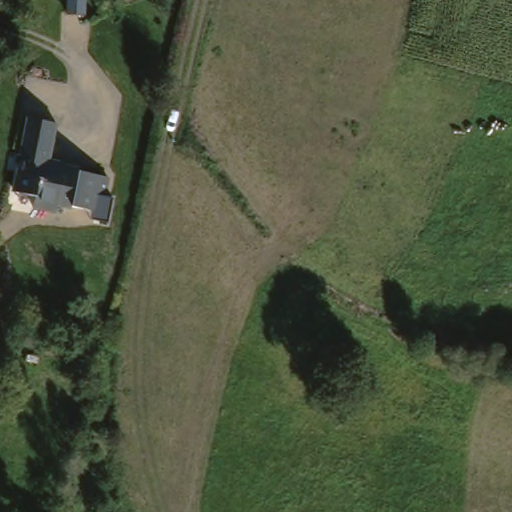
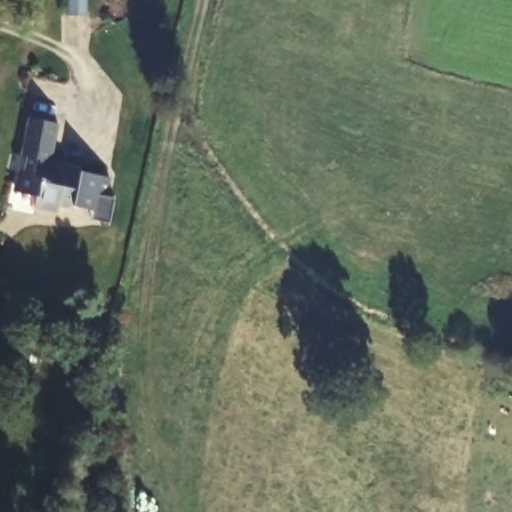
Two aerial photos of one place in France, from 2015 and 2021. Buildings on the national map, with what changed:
unchanged [(53,159),(70,164),(70,167),(106,176),(102,199),(92,197),(89,211),(57,205),(55,213),(34,209),(35,200),(15,195),(19,171),(25,172),(29,155),(20,154),(28,120),(59,127),(53,159)]

